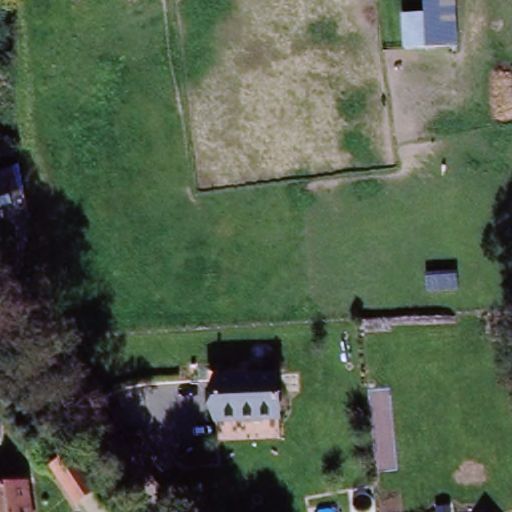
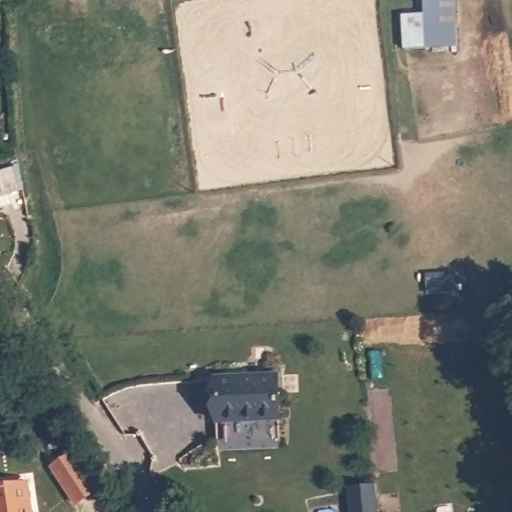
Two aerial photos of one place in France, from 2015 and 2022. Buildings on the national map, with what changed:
unchanged [(422,48),(422,0),(452,0),(452,48),(422,48)]
unchanged [(0,172),(20,170),(22,188),(10,189),(12,203),(0,205),(0,172)]
unchanged [(428,272),(459,269),(459,291),(427,292),(428,272)]
unchanged [(216,364),(279,365),(279,428),(216,426),(216,364)]
unchanged [(78,450),(107,488),(74,509),(49,467),(78,450)]
unchanged [(35,512),(0,512),(0,489),(32,486),(35,512)]

